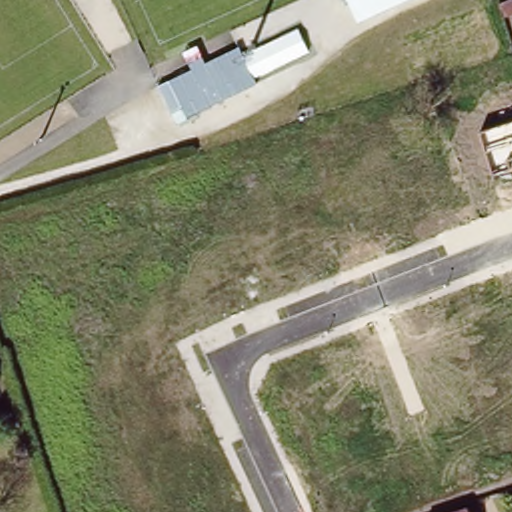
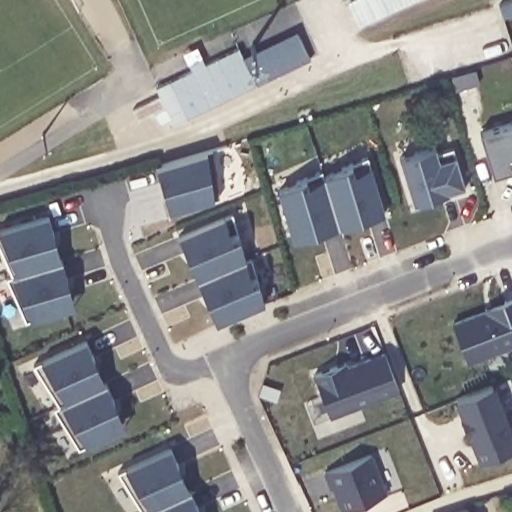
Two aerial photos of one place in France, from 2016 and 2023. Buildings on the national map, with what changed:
unchanged [(357,24),(345,0),(407,0),(357,24)]
unchanged [(512,14),(504,17),(499,3),(507,0),(512,0),(512,14)]
unchanged [(298,29),(310,52),(250,80),(239,58),(298,29)]
unchanged [(186,70),(183,64),(196,56),(200,62),(232,45),(252,82),(171,125),(152,88),(186,70)]
unchanged [(512,157),(507,159),(510,167),(494,172),(480,131),(512,121),(512,157)]
new [(434,145),(436,151),(452,146),(464,185),(440,193),(441,197),(413,205),(399,156),(434,145)]
new [(212,150),(220,198),(179,209),(170,182),(162,185),(156,169),(212,150)]
new [(367,155),(384,211),(365,216),(363,207),(335,215),(333,212),(323,175),(367,155)]
new [(321,169),(323,175),(333,212),(337,225),(320,230),(317,221),(289,230),(277,189),(321,169)]
new [(231,212),(245,260),(205,275),(194,249),(185,252),(177,235),(231,212)]
new [(53,214),(59,232),(50,235),(58,263),(17,275),(0,237),(0,230),(53,214)]
new [(205,275),(245,260),(250,257),(264,302),(225,318),(212,292),(204,296),(196,278),(205,275)]
new [(17,275),(58,263),(67,260),(72,277),(63,280),(71,308),(30,320),(11,277),(17,275)]
new [(504,301),(512,298),(512,343),(467,360),(452,324),(505,303),(504,301)]
new [(95,335),(103,352),(95,356),(107,383),(68,401),(42,360),(95,335)]
new [(344,361),(345,365),(383,350),(398,387),(330,415),(312,373),(335,364),(344,361)]
new [(68,401),(107,383),(115,379),(123,396),(115,400),(127,426),(88,445),(62,403),(68,401)]
new [(512,435),(512,447),(480,460),(469,430),(467,431),(460,414),(462,413),(456,397),(492,383),(512,435)]
new [(178,445),(186,461),(177,465),(190,492),(150,510),(125,469),(178,445)]
new [(370,452),(385,492),(342,509),(333,486),(330,487),(324,470),(370,452)]
new [(190,492),(198,488),(206,505),(197,509),(198,512),(145,512),(150,510),(190,492)]
unchanged [(470,512),(463,512),(469,510),(470,512)]

